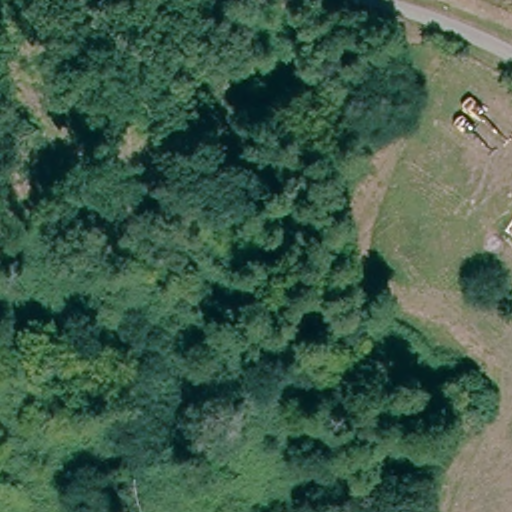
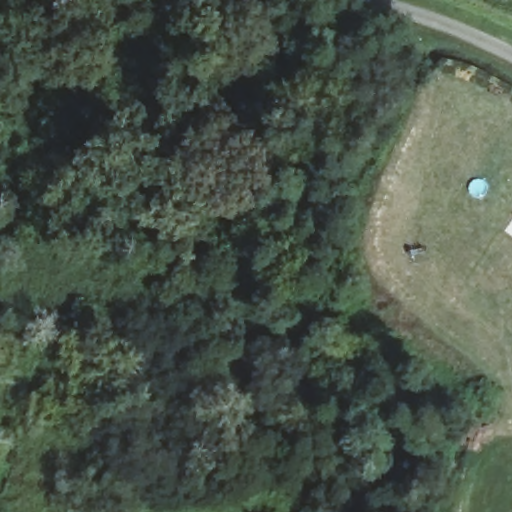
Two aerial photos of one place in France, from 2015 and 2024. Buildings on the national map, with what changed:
[]

